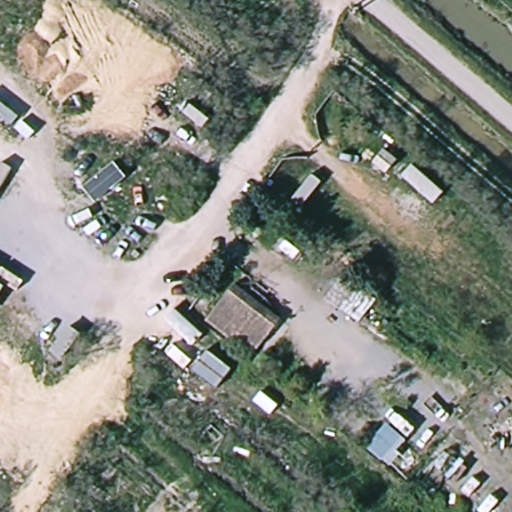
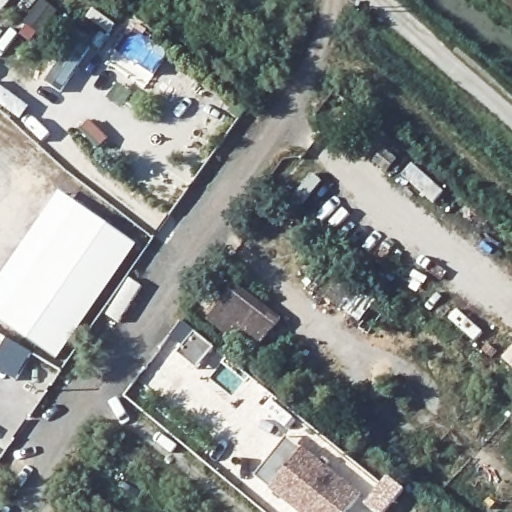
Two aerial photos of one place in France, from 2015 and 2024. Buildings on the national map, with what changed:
new [(137,247),(60,365),(0,326),(0,286),(60,197),(137,247)]
demolished [(0,277),(6,281),(0,291),(0,277)]
unchanged [(257,348),(237,332),(232,339),(207,318),(235,281),(282,318),(257,348)]
new [(0,349),(7,338),(32,354),(15,380),(0,370),(0,349)]
demolished [(387,421),(427,454),(402,484),(365,442),(387,421)]
new [(361,494),(347,512),(298,512),(270,490),(303,448),(361,494)]

